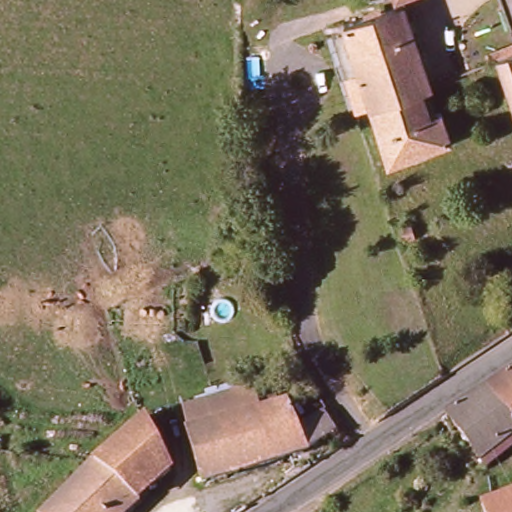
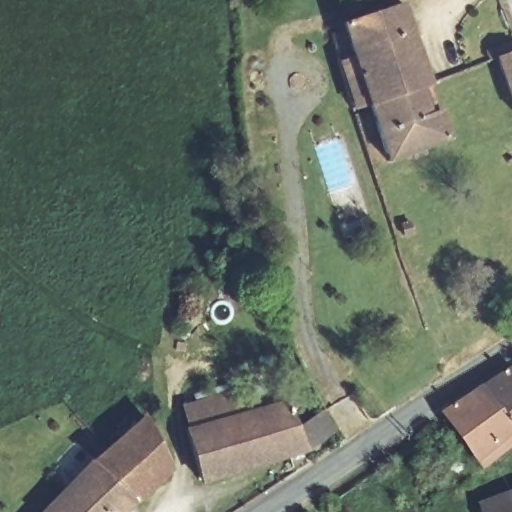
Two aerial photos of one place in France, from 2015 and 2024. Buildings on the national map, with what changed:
unchanged [(402,8),(412,38),(352,58),(342,27),(362,21),(402,8)]
unchanged [(352,58),(412,38),(429,88),(425,90),(368,108),(352,58)]
unchanged [(501,61),(493,65),(490,56),(512,49),(512,93),(501,61)]
unchanged [(433,115),(438,113),(447,142),(387,164),(368,108),(425,90),(433,115)]
unchanged [(402,237),(394,240),(391,232),(400,229),(402,237)]
unchanged [(482,462),(480,459),(448,414),(490,388),(512,374),(512,450),(507,454),(501,457),(499,459),(487,468),(482,462)]
unchanged [(202,428),(196,405),(252,390),(259,411),(202,428)]
unchanged [(259,411),(287,403),(300,432),(327,417),(337,434),(308,451),(295,456),(219,477),(203,483),(189,432),(202,428),(259,411)]
unchanged [(144,418),(155,445),(166,470),(120,512),(41,512),(92,461),(144,418)]
unchanged [(479,512),(477,506),(512,494),(512,512),(479,512)]

